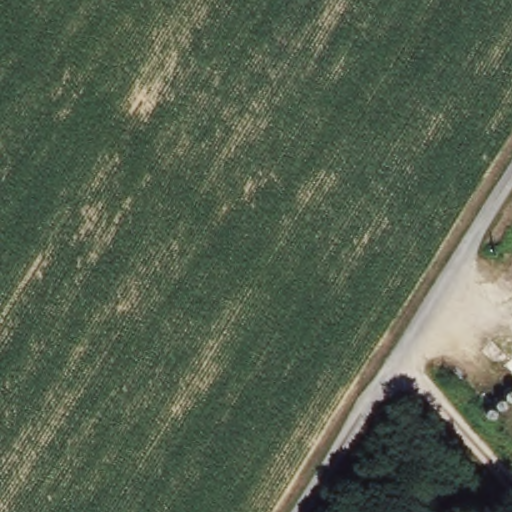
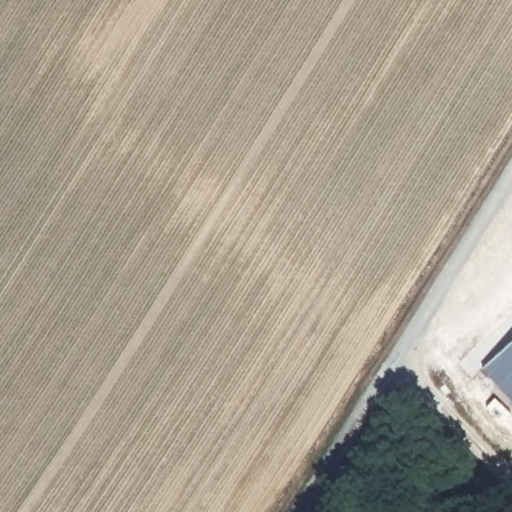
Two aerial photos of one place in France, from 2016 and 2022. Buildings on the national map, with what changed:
new [(480,369),(512,340),(512,403),(480,369)]
demolished [(504,370),(512,362),(512,378),(504,370)]

